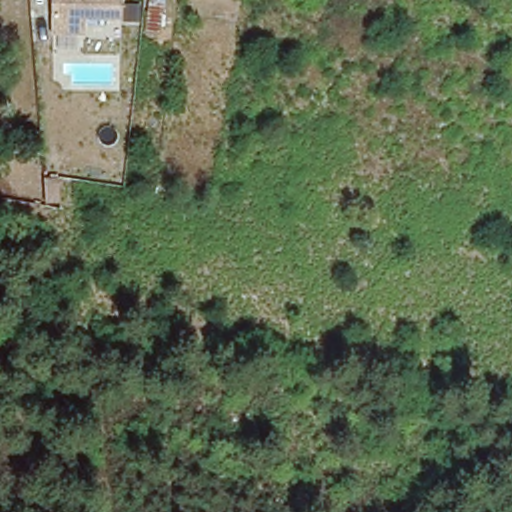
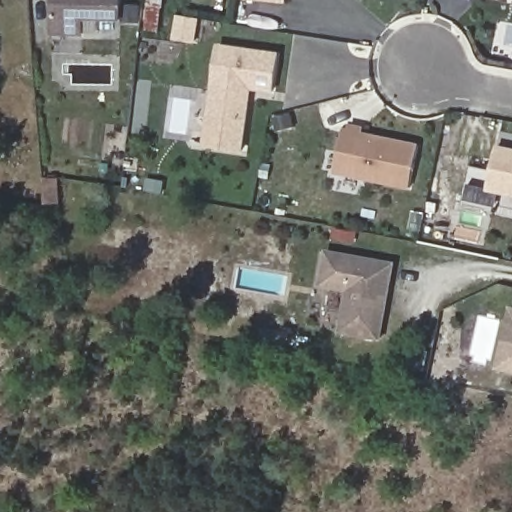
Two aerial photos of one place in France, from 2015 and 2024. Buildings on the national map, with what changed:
unchanged [(86,22),(85,42),(49,40),(51,0),(120,0),(120,21),(86,22)]
new [(286,2),(266,0),(286,0),(286,2)]
new [(161,31),(146,30),(149,6),(163,8),(161,31)]
new [(198,19),(196,39),(176,36),(178,16),(198,19)]
new [(207,130),(209,117),(220,45),(278,54),(273,91),(251,87),(249,100),(246,122),(244,135),(207,130)]
new [(346,130),(349,130),(350,122),(365,125),(363,132),(420,143),(411,190),(336,174),(346,130)]
new [(487,189),(497,149),(512,152),(512,194),(487,189)]
unchanged [(44,172),(67,174),(65,204),(41,201),(44,172)]
new [(391,281),(389,289),(380,338),(342,331),(349,290),(322,285),(327,252),(393,264),(391,281)]
new [(512,309),(512,372),(497,369),(512,308),(512,309)]

